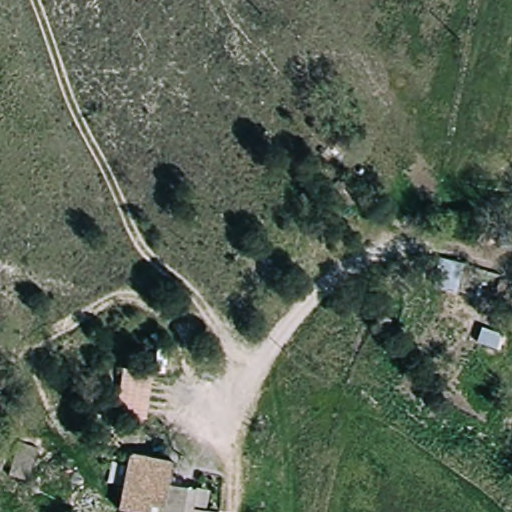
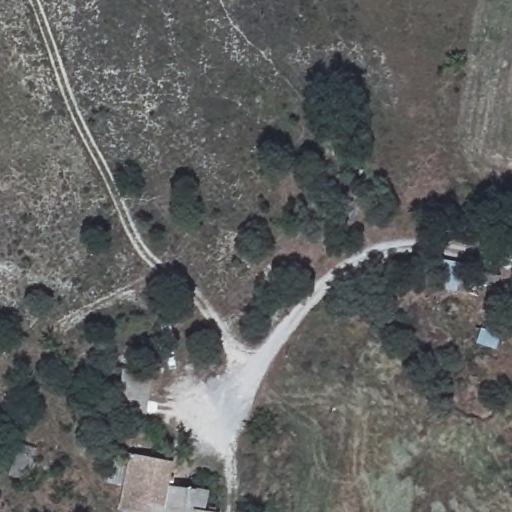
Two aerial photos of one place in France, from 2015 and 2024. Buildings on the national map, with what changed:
unchanged [(145,415),(116,414),(122,368),(151,370),(145,415)]
unchanged [(30,482),(9,477),(19,440),(38,448),(30,482)]
unchanged [(130,453),(171,462),(168,484),(209,489),(206,511),(210,512),(126,512),(116,509),(130,453)]

